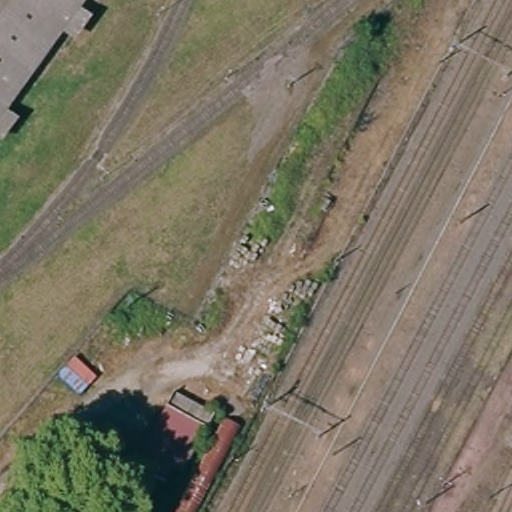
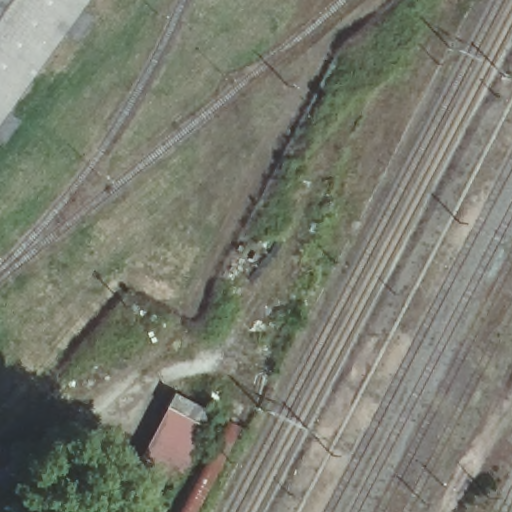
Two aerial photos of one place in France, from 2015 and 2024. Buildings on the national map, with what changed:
unchanged [(0,121),(0,0),(88,0),(0,121)]
unchanged [(171,467),(165,483),(133,467),(161,406),(172,408),(179,398),(213,413),(183,471),(171,467)]
unchanged [(247,432),(202,512),(175,512),(220,417),(247,432)]

